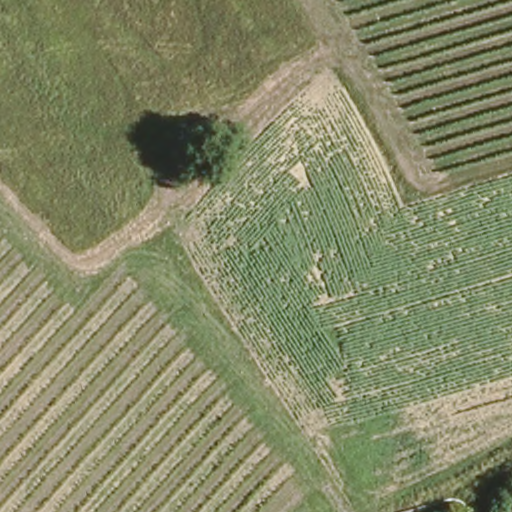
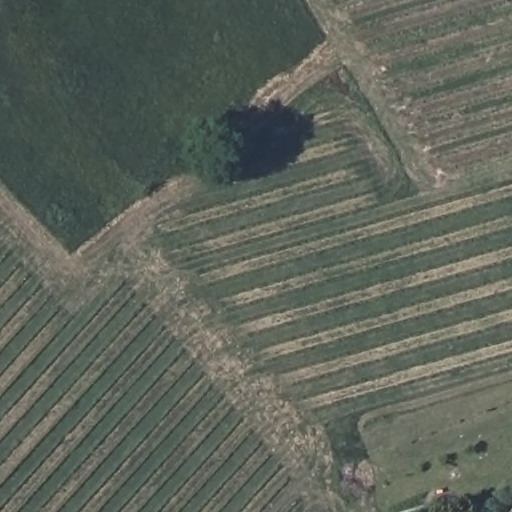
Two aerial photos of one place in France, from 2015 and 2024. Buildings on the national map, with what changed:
unchanged [(512,512),(504,512),(512,504),(512,512)]

